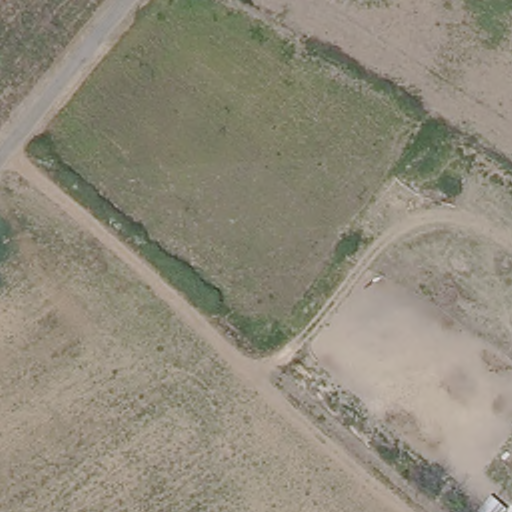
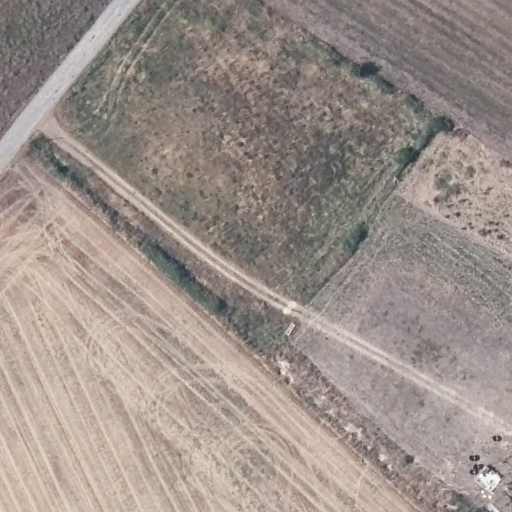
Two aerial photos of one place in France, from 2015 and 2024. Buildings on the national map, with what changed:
unchanged [(487,497),(507,512),(476,512),(487,497)]

